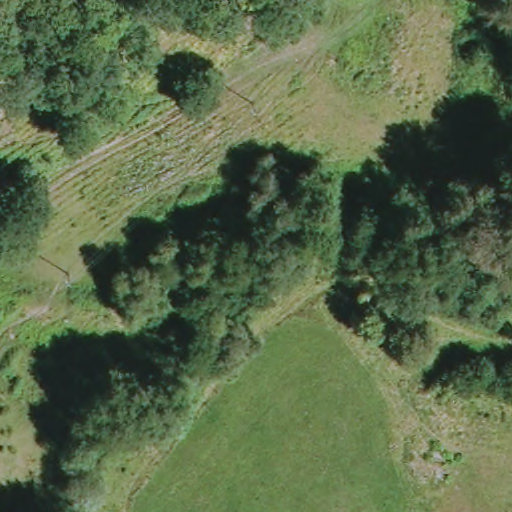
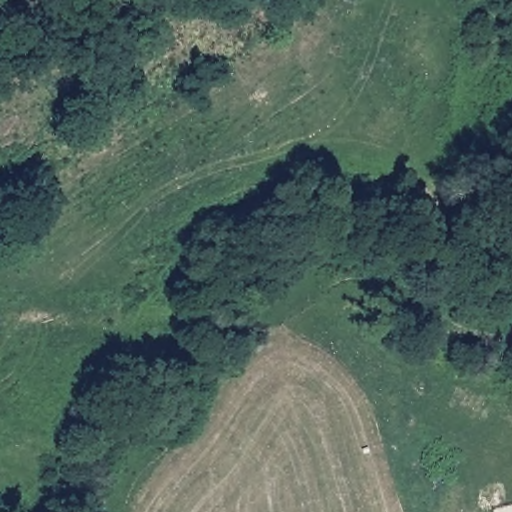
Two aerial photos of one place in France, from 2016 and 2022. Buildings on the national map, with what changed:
[]

